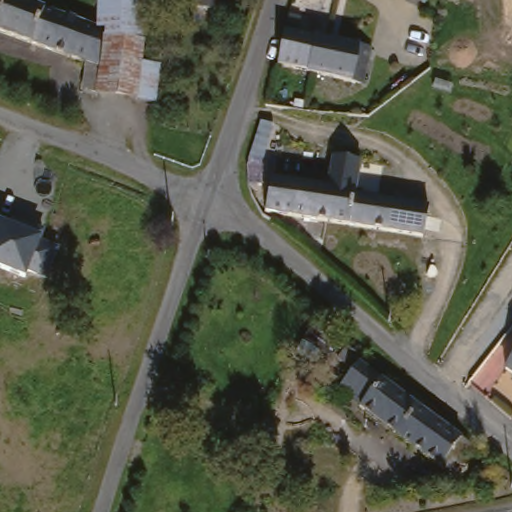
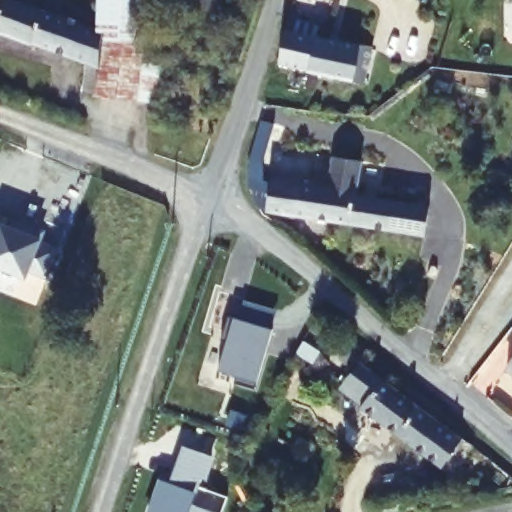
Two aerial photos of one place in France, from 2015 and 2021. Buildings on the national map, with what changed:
unchanged [(30,10),(96,36),(99,38),(103,39),(101,44),(98,55),(93,71),(0,36),(0,0),(11,0),(11,3),(30,10)]
unchanged [(93,71),(98,55),(101,44),(103,39),(99,38),(98,0),(145,0),(146,38),(144,42),(144,47),(143,76),(143,91),(136,91),(93,93),(93,71)]
unchanged [(361,54),(360,60),(356,76),(360,77),(358,87),(269,61),(279,29),(361,54)]
unchanged [(268,181),(326,192),(334,160),(363,165),(357,199),(430,212),(422,245),(263,212),(268,181)]
unchanged [(2,219),(7,211),(48,230),(43,240),(65,247),(53,280),(35,274),(33,280),(0,267),(0,213),(2,219)]
new [(228,337),(223,335),(230,311),(274,325),(257,385),(236,378),(238,371),(220,365),(228,337)]
unchanged [(512,358),(512,379),(501,371),(512,358)]
unchanged [(335,383),(349,366),(373,385),(412,413),(393,438),(353,410),(359,402),(335,383)]
unchanged [(412,413),(464,452),(446,477),(393,438),(412,413)]
new [(164,477),(177,482),(184,465),(180,464),(187,445),(215,455),(208,475),(203,472),(193,502),(218,512),(152,512),(164,477)]

